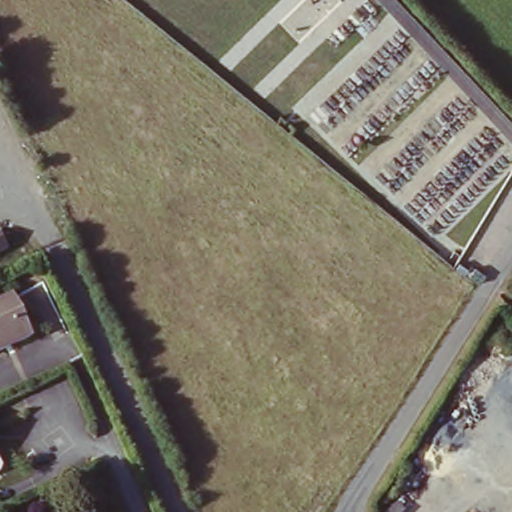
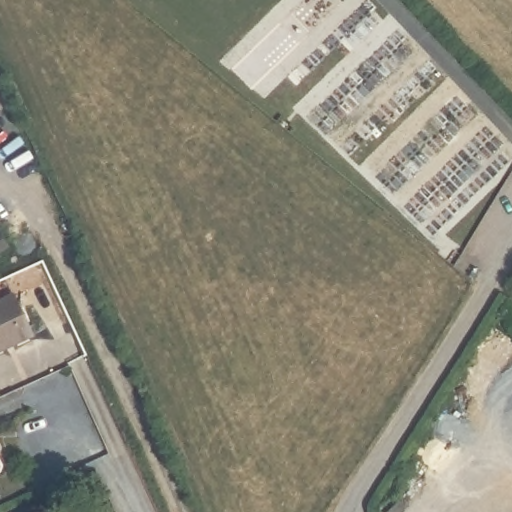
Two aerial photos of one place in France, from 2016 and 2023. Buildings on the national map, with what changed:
unchanged [(15,295),(35,336),(0,352),(0,303),(15,295)]
unchanged [(6,470),(0,472),(0,456),(6,470)]

